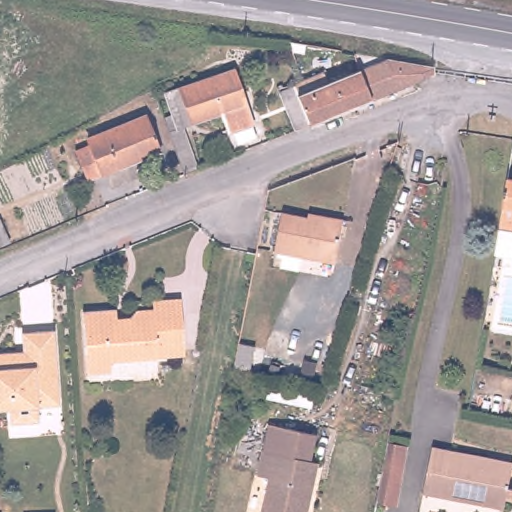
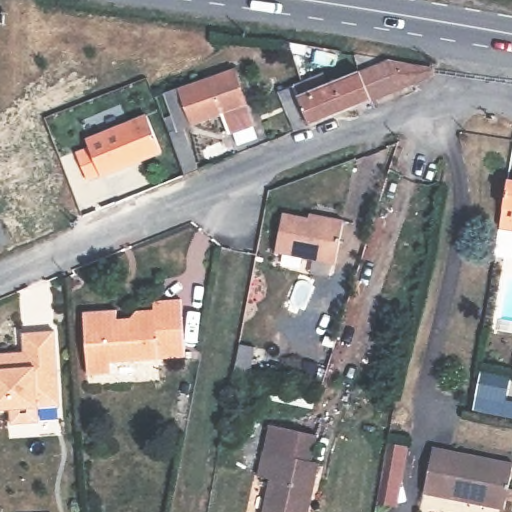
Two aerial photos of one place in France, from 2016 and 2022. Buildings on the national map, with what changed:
unchanged [(292,100),(302,96),(381,63),(427,71),(427,79),(304,130),(290,135),(280,105),(292,100)]
unchanged [(167,94),(249,66),(267,123),(243,131),(236,112),(195,125),(211,169),(197,174),(167,94)]
unchanged [(76,151),(91,145),(87,135),(146,111),(161,150),(87,180),(76,151)]
unchanged [(502,206),(507,178),(512,178),(512,248),(511,257),(492,253),(493,251),(502,206)]
unchanged [(277,256),(285,215),(321,222),(322,217),(347,222),(337,268),(277,256)]
unchanged [(0,219),(1,219),(12,242),(0,247),(0,219)]
unchanged [(81,315),(115,312),(115,325),(125,325),(138,312),(152,311),(152,304),(180,302),(184,358),(109,364),(110,376),(86,377),(82,323),(81,315)]
unchanged [(25,354),(24,331),(54,330),(59,404),(37,405),(38,422),(11,423),(10,407),(0,407),(0,351),(12,350),(12,354),(25,354)]
unchanged [(233,370),(238,343),(254,347),(250,372),(233,370)]
new [(473,410),(482,369),(509,374),(504,400),(512,401),(512,416),(473,410)]
unchanged [(272,478),(260,475),(271,424),(317,434),(311,461),(310,463),(312,463),(302,512),(265,512),(272,478)]
unchanged [(377,505),(387,441),(411,444),(401,508),(377,505)]
unchanged [(426,493),(435,446),(512,461),(512,471),(505,507),(426,493)]

